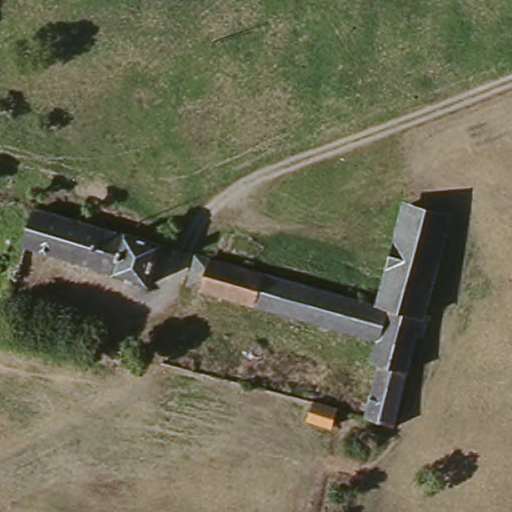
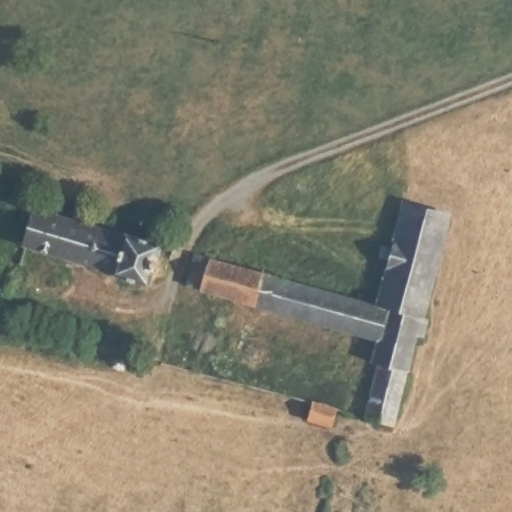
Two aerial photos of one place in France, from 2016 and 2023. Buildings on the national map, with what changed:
unchanged [(136,286),(96,273),(99,265),(21,242),(32,207),(109,229),(112,222),(151,236),(136,286)]
unchanged [(384,305),(404,232),(445,243),(416,344),(426,346),(422,363),(416,361),(400,417),(364,408),(379,358),(371,357),(378,334),(197,285),(204,257),(384,305)]
unchanged [(340,422),(316,415),(320,399),(346,406),(340,422)]

